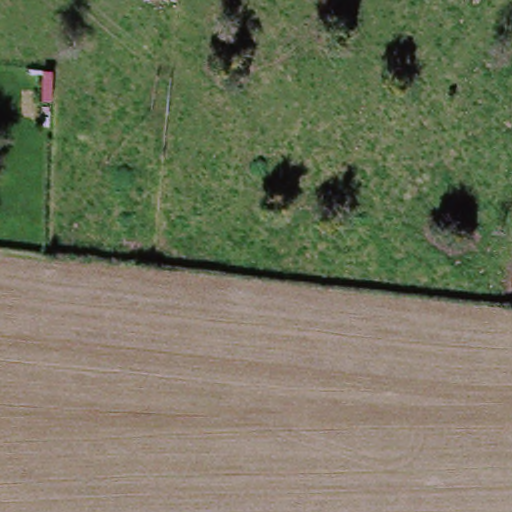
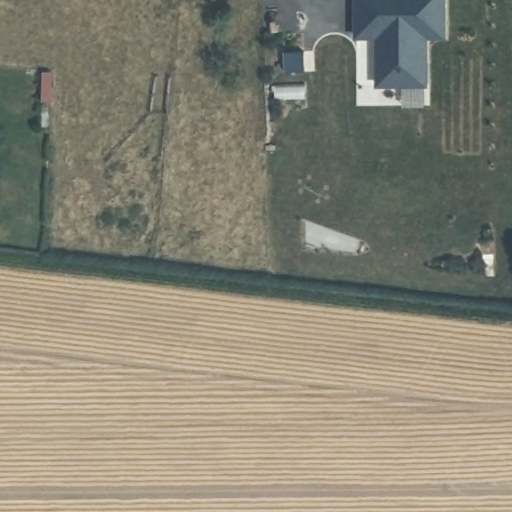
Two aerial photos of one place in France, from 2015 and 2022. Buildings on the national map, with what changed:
new [(355,0),(443,0),(443,29),(425,29),(425,77),(377,77),(377,47),(377,30),(389,29),(355,30),(355,0)]
new [(283,45),(303,45),(303,64),(283,65),(283,45)]

